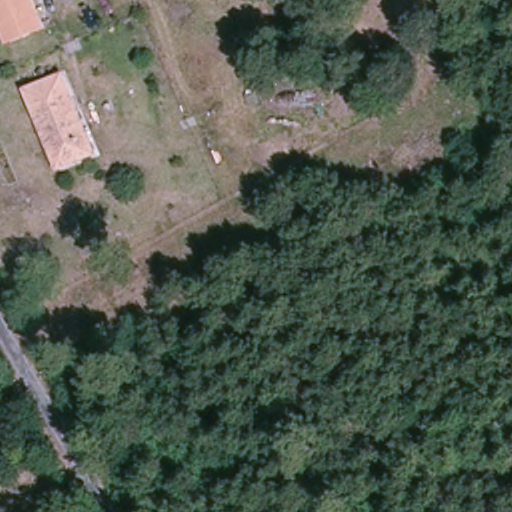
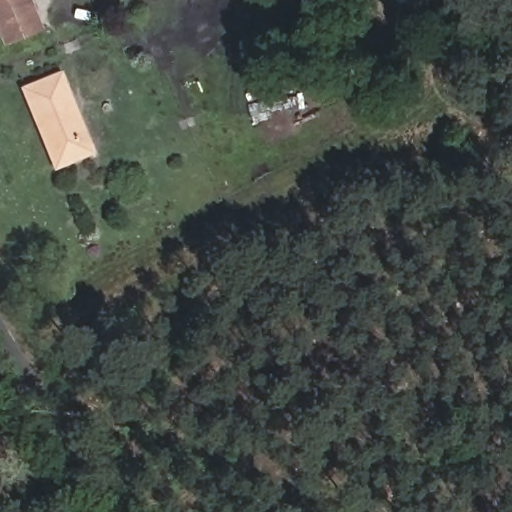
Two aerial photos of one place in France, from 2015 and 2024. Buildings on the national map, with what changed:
unchanged [(11,51),(0,26),(0,0),(30,0),(44,33),(19,47),(11,51)]
unchanged [(92,151),(61,167),(26,93),(27,93),(58,78),(65,94),(92,151)]

